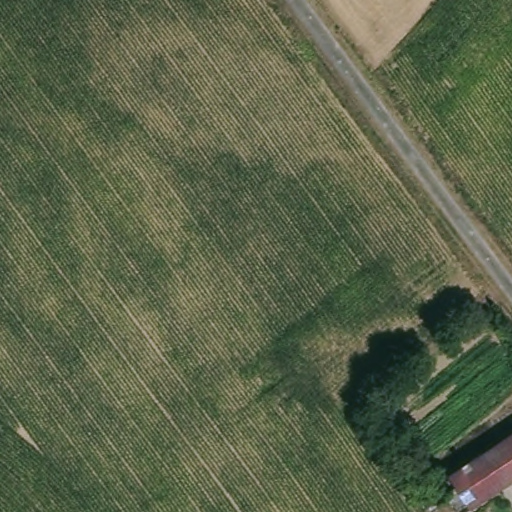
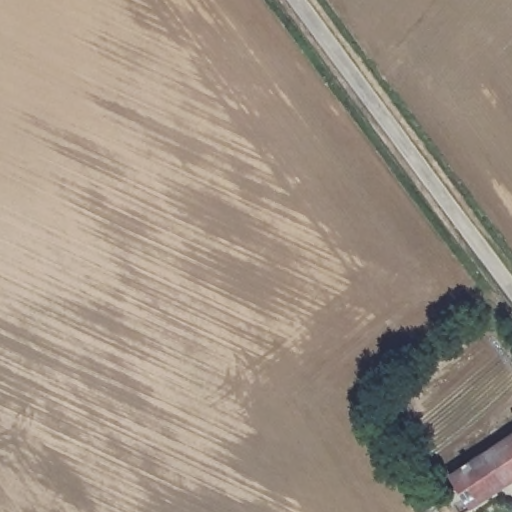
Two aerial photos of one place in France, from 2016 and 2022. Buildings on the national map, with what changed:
unchanged [(471,507),(466,512),(459,512),(447,499),(457,491),(448,480),(512,433),(512,487),(481,512),(476,512),(471,507)]

